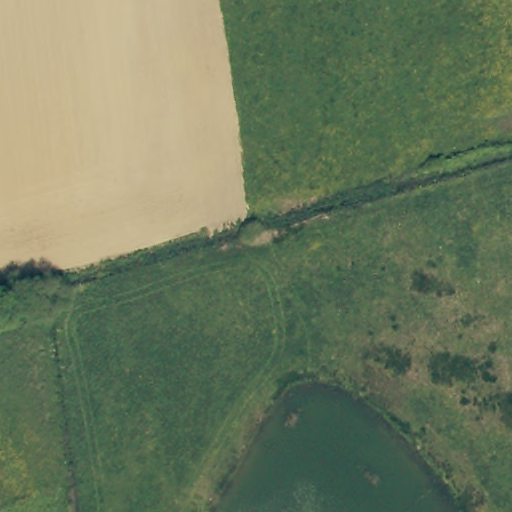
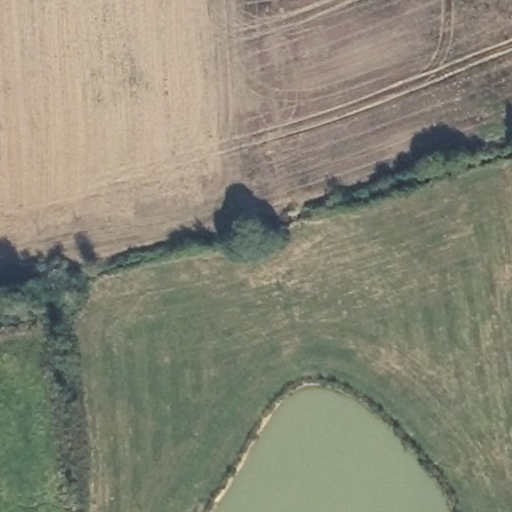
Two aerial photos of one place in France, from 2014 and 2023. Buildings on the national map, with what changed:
[]

